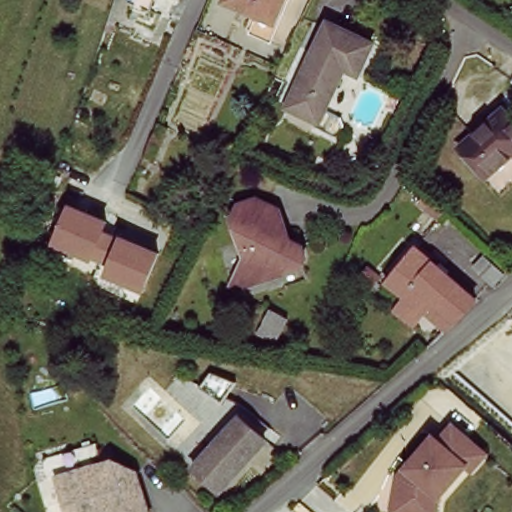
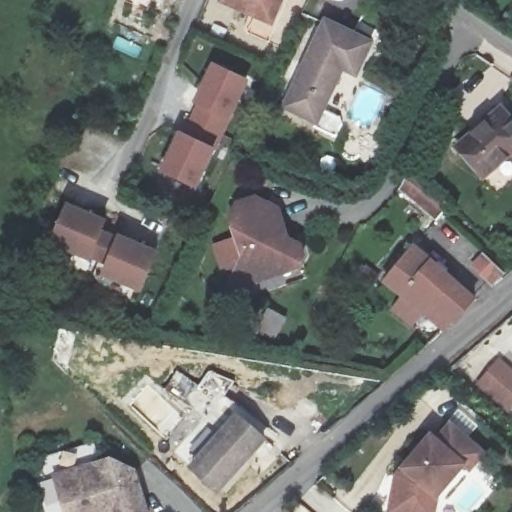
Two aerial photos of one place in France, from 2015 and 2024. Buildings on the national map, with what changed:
unchanged [(227,0),(286,0),(275,27),(224,7),(227,0)]
unchanged [(280,109),(323,24),(368,45),(352,79),(337,71),(312,125),(280,109)]
new [(188,113),(212,61),(250,79),(217,148),(179,130),(188,113)]
unchanged [(501,111),(512,125),(512,157),(483,179),(456,147),(501,111)]
new [(179,130),(217,148),(196,190),(157,171),(179,130)]
unchanged [(235,207),(259,200),(277,209),(287,237),(300,245),(304,258),(297,271),(237,291),(228,286),(243,257),(230,218),(235,207)]
unchanged [(51,246),(68,203),(109,220),(92,262),(51,246)]
unchanged [(105,275),(122,235),(162,252),(143,293),(105,275)]
unchanged [(445,331),(423,308),(386,275),(419,246),(476,302),(445,331)]
unchanged [(291,325),(279,348),(262,339),(275,316),(291,325)]
new [(504,415),(475,389),(501,360),(512,370),(512,406),(504,415)]
unchanged [(202,393),(213,378),(238,388),(224,408),(202,393)]
unchanged [(193,472),(240,420),(266,441),(218,493),(193,472)]
unchanged [(438,438),(444,442),(456,429),(479,448),(489,456),(476,472),(470,468),(444,500),(441,512),(397,512),(405,478),(438,438)]
unchanged [(74,492),(69,476),(68,471),(71,470),(99,462),(102,471),(128,463),(139,468),(152,512),(70,512),(67,500),(75,497),(74,492)]

